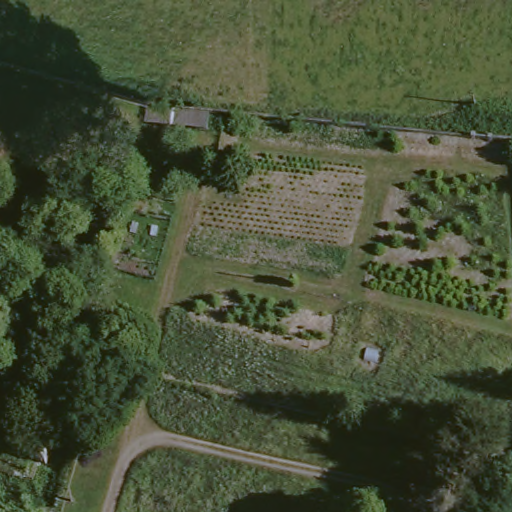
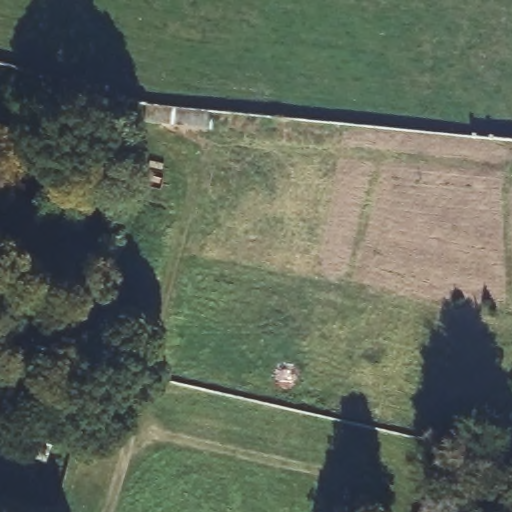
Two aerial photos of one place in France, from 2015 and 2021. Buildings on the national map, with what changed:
unchanged [(27,454),(33,431),(51,435),(45,460),(39,458),(27,454)]

